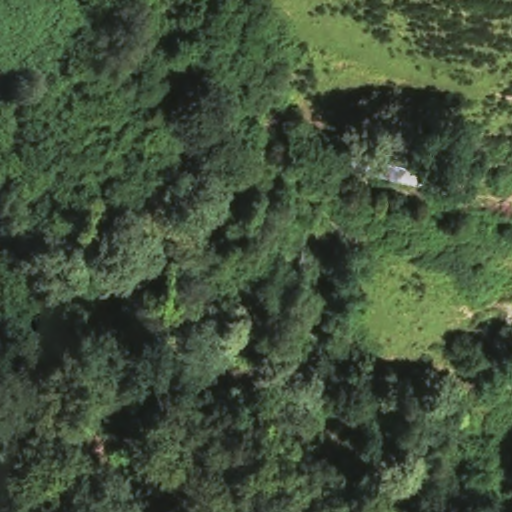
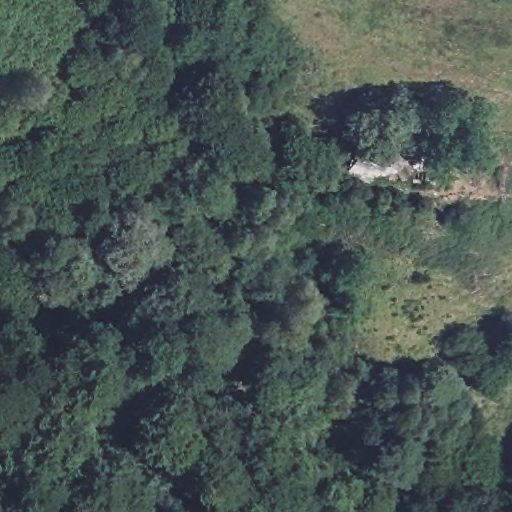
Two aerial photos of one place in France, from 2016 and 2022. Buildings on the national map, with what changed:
unchanged [(444,156),(438,186),(388,177),(351,171),(356,140),(444,156)]

